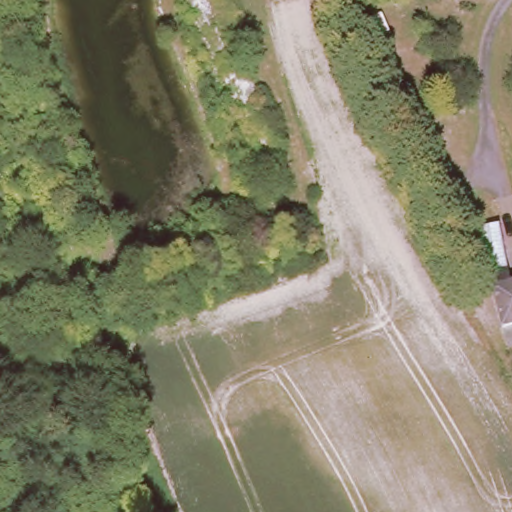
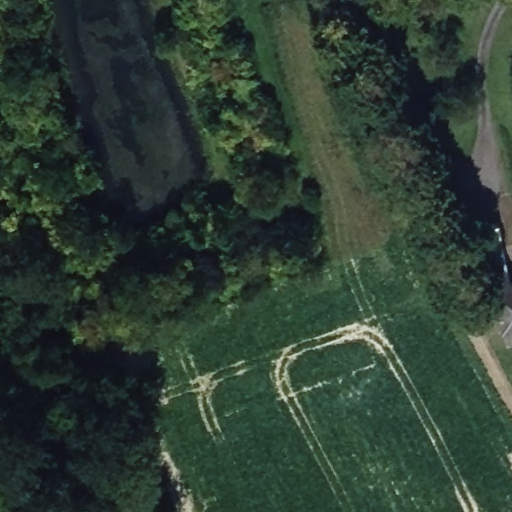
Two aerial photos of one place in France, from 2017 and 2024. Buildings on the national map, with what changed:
unchanged [(472,276),(468,234),(500,227),(505,270),(472,276)]
unchanged [(491,287),(512,283),(512,321),(499,324),(491,287)]

